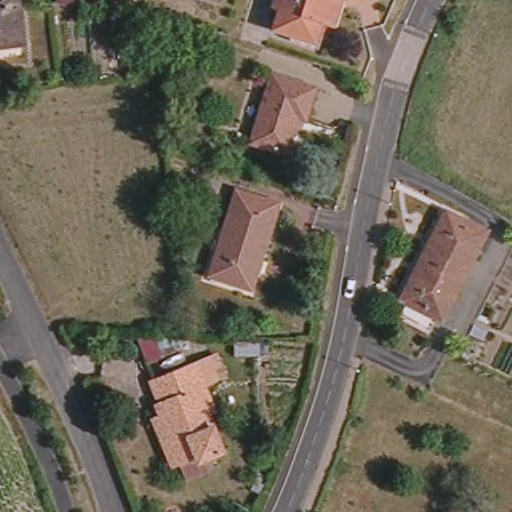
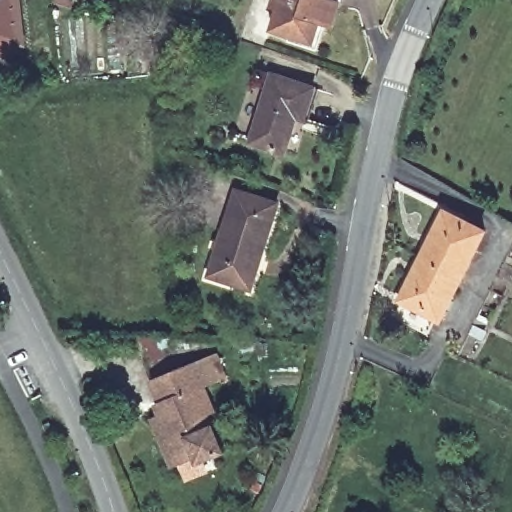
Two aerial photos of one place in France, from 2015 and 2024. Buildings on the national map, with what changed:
unchanged [(25,42),(0,45),(0,0),(20,0),(25,42)]
unchanged [(335,27),(321,22),(315,44),(275,32),(282,10),(273,8),(275,0),(328,0),(328,1),(341,5),(335,27)]
unchanged [(314,87),(305,118),(297,116),(286,151),(252,142),(272,75),(314,87)]
unchanged [(245,281),(211,271),(235,191),(278,205),(262,259),(255,284),(245,281)]
unchanged [(454,211),(495,232),(472,276),(431,256),(454,211)]
unchanged [(431,256),(472,276),(450,320),(444,317),(436,334),(401,316),(431,256)]
unchanged [(512,282),(510,286),(497,279),(508,257),(512,258),(512,282)]
unchanged [(487,326),(480,341),(469,336),(476,321),(487,326)]
unchanged [(152,425),(161,420),(156,409),(159,407),(150,388),(217,360),(225,382),(207,390),(217,417),(209,420),(224,455),(202,465),(206,476),(188,484),(181,466),(172,471),(152,425)]

